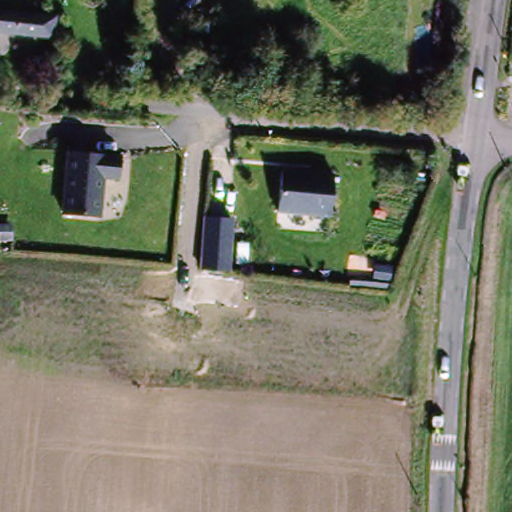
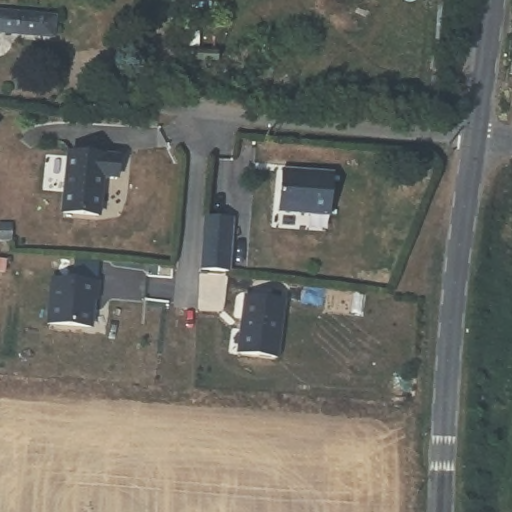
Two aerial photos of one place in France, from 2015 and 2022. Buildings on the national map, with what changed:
unchanged [(54,16),(53,34),(0,30),(0,12),(54,16)]
unchanged [(103,170),(98,208),(64,205),(69,147),(119,152),(117,171),(103,170)]
unchanged [(338,175),(334,216),(284,212),(287,170),(338,175)]
unchanged [(233,217),(231,271),(199,269),(201,216),(233,217)]
unchanged [(0,238),(0,223),(13,223),(13,238),(0,238)]
new [(49,325),(52,278),(96,280),(95,298),(93,298),(91,327),(49,325)]
new [(276,355),(239,349),(248,294),(286,300),(276,355)]

